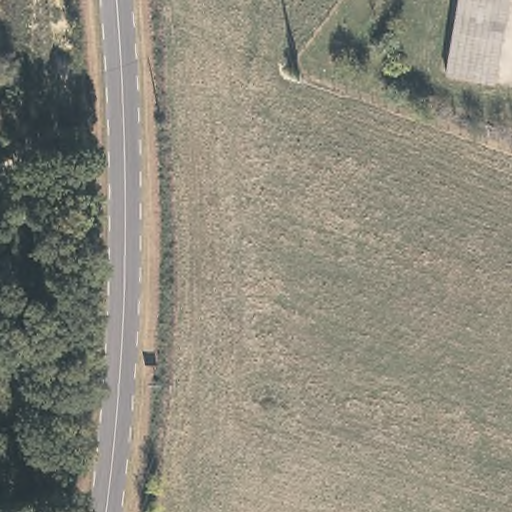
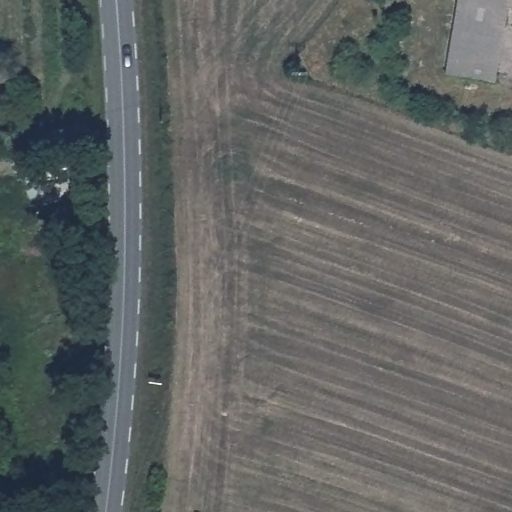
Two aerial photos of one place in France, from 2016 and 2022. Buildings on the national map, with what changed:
unchanged [(490,82),(441,74),(454,0),(504,0),(490,82)]

